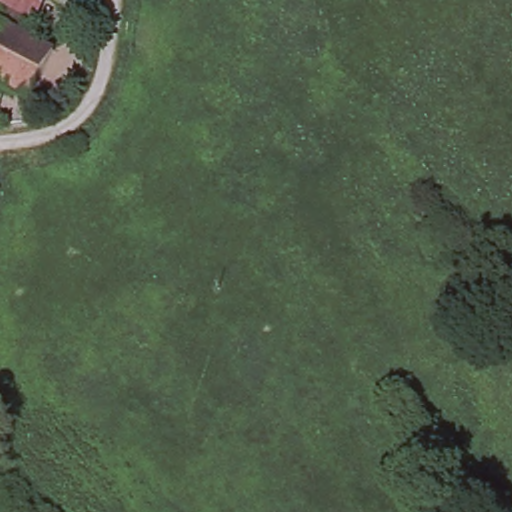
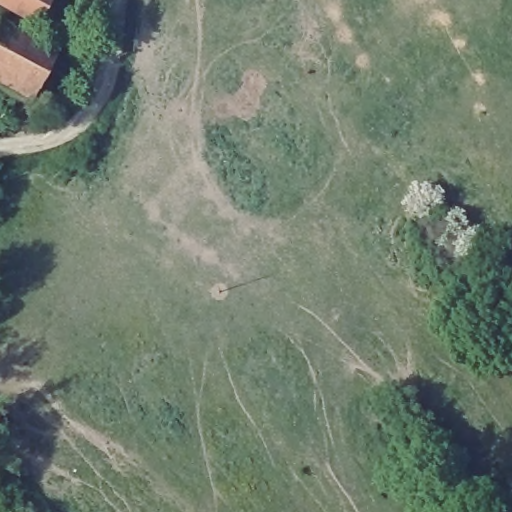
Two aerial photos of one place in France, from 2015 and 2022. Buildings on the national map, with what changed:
unchanged [(0,0),(54,0),(55,0),(38,30),(35,27),(5,11),(0,9),(0,0)]
unchanged [(26,43),(59,61),(32,107),(0,90),(0,22),(5,11),(35,27),(26,43)]

